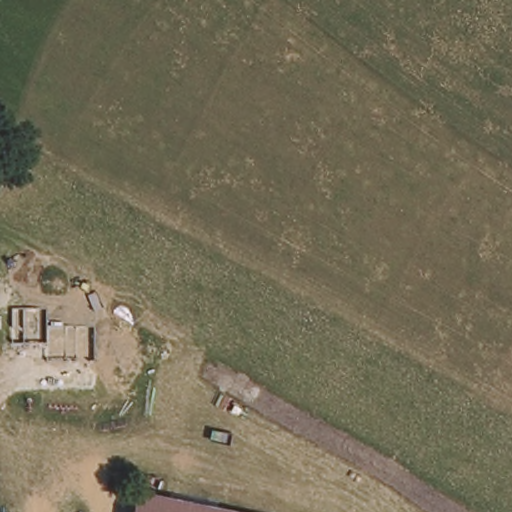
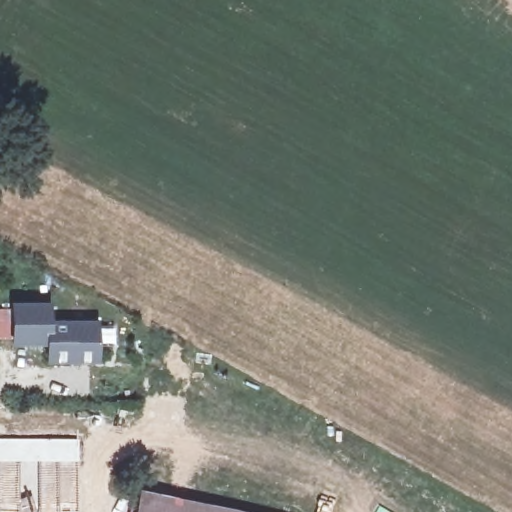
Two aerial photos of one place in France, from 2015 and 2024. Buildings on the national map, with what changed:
new [(9,304),(50,304),(50,322),(98,322),(98,366),(45,366),(44,347),(10,348),(9,304)]
new [(79,438),(80,462),(40,463),(21,463),(0,463),(0,437),(79,438)]
new [(21,463),(22,484),(20,512),(0,512),(0,463),(21,463)]
unchanged [(235,512),(136,512),(140,493),(235,512)]

